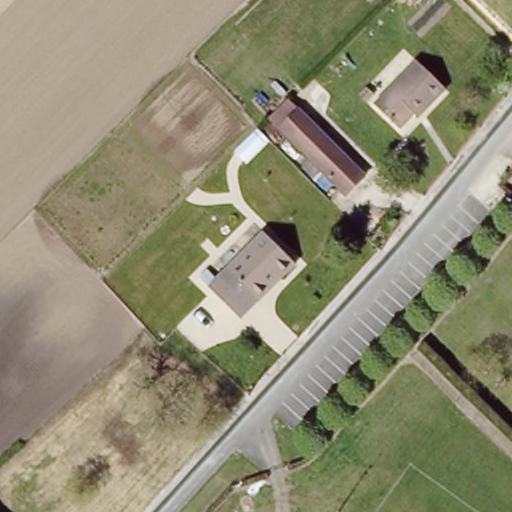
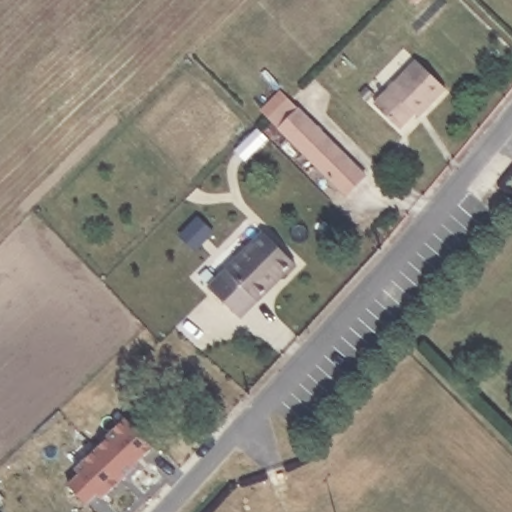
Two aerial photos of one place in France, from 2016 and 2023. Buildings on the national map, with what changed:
unchanged [(409,110),(395,123),(386,114),(370,100),(412,56),(430,72),(442,84),(421,106),(414,114),(409,110)]
unchanged [(336,192),(315,171),(287,141),(275,130),(297,108),(307,120),(336,150),(357,171),(362,177),(342,197),(336,192)]
unchanged [(260,302),(242,318),(217,292),(214,290),(230,273),(267,236),(271,240),(298,267),(285,280),(262,303),(260,302)]
new [(110,438),(108,437),(128,417),(158,448),(140,466),(144,469),(130,482),(99,449),(110,438)]
new [(82,473),(77,468),(99,449),(130,482),(109,502),(102,495),(90,507),(70,485),(82,473)]

